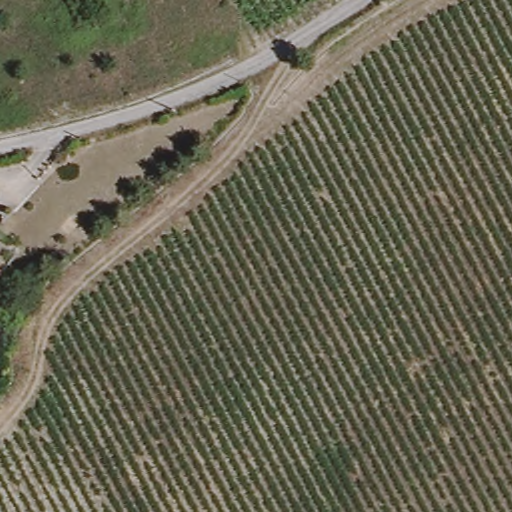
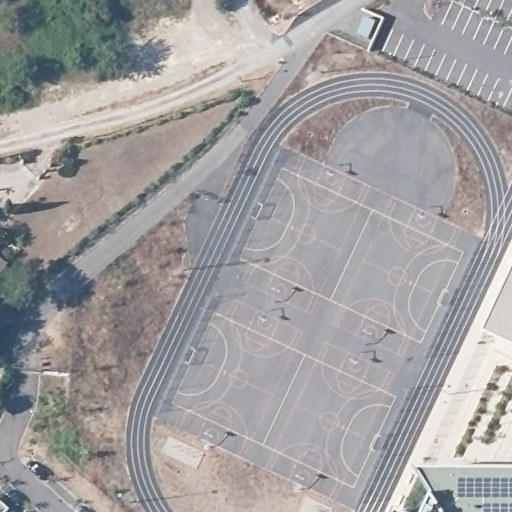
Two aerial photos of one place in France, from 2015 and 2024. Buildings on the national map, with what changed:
unchanged [(0,284),(0,264),(10,271),(0,284)]
new [(485,329),(512,273),(512,342),(485,329)]
new [(442,501),(422,472),(512,472),(512,512),(437,512),(442,501)]

